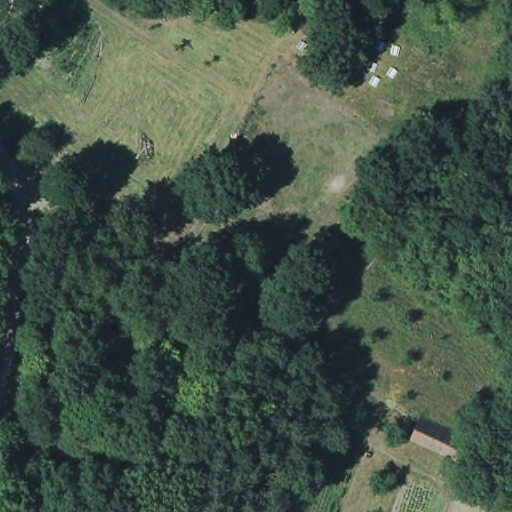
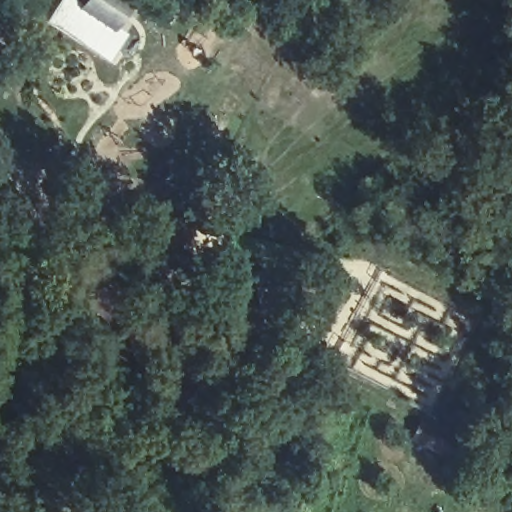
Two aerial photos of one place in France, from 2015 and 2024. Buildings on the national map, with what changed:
new [(121,29),(130,35),(111,64),(49,23),(61,0),(82,0),(86,3),(88,0),(119,0),(135,9),(121,29)]
unchanged [(452,465),(407,446),(412,434),(458,454),(452,465)]

